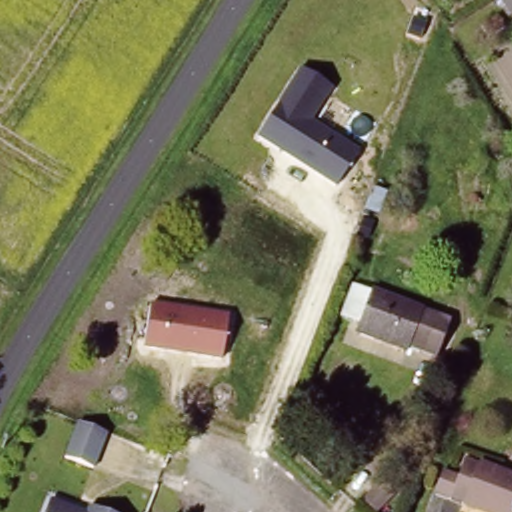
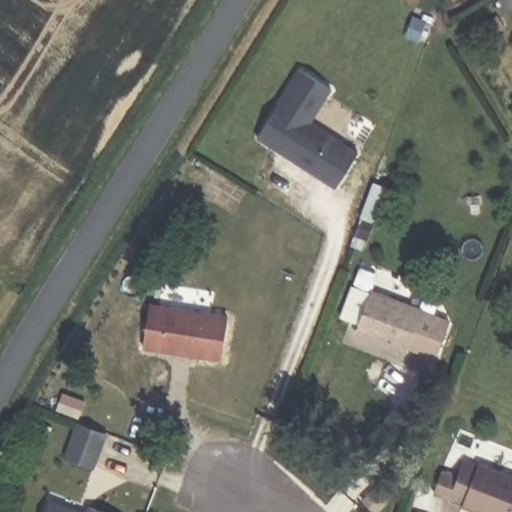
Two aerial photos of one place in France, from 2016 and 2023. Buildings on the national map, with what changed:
unchanged [(257,136),(299,69),(332,89),(311,123),(359,153),(336,187),(257,136)]
unchanged [(454,324),(440,361),(415,351),(413,357),(362,337),(365,329),(347,321),(359,288),(378,295),(378,294),(454,324)]
unchanged [(144,349),(151,304),(229,315),(223,361),(144,349)]
unchanged [(96,468),(68,457),(81,422),(87,424),(109,433),(96,468)]
unchanged [(512,482),(512,512),(475,512),(450,502),(465,463),(512,482)]
unchanged [(381,482),(395,494),(377,512),(376,512),(364,501),(381,482)]
unchanged [(52,502),(79,512),(47,512),(52,502)]
unchanged [(92,507),(105,512),(90,512),(92,507)]

